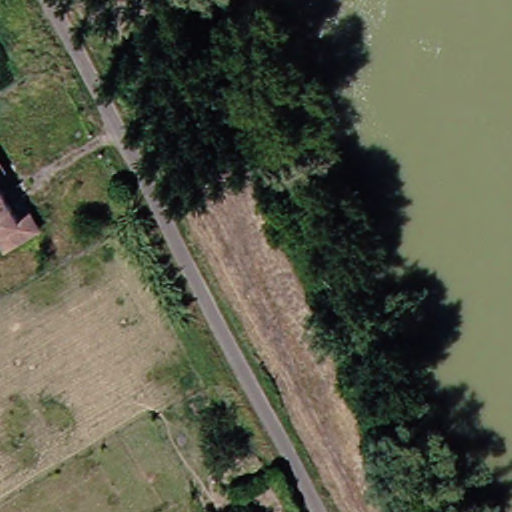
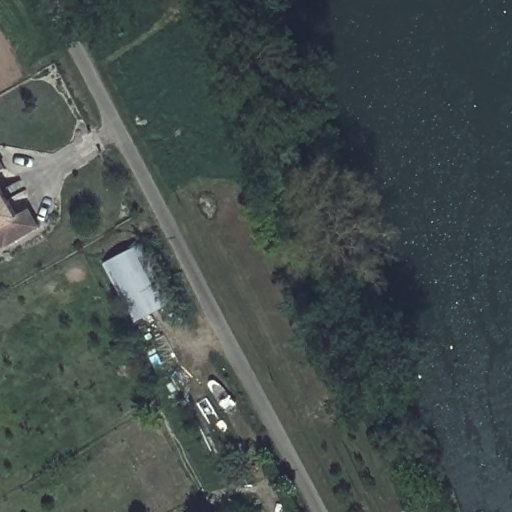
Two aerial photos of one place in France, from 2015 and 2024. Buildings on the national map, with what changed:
unchanged [(12,209),(22,204),(33,223),(0,243),(0,188),(12,209)]
new [(137,320),(106,264),(140,246),(170,303),(137,320)]

